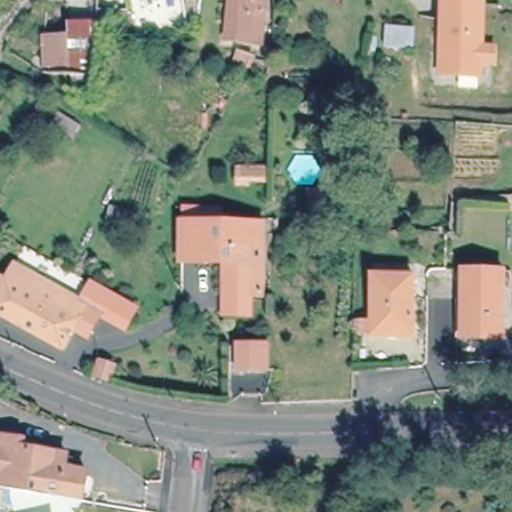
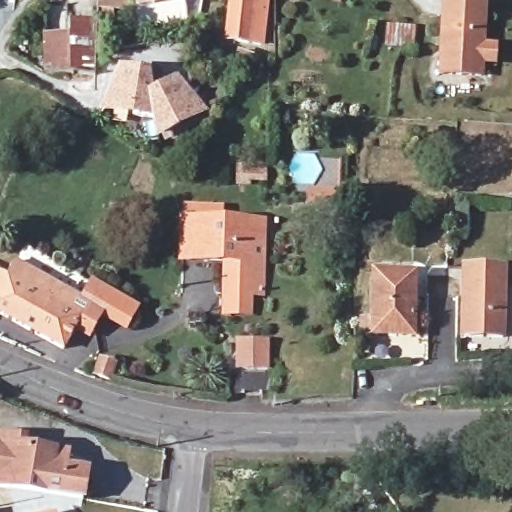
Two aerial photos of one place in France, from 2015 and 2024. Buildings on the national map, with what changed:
unchanged [(136,26),(133,9),(116,11),(118,23),(97,26),(97,18),(98,0),(202,0),(199,18),(136,26)]
unchanged [(236,0),(271,0),(265,38),(231,34),(236,0)]
unchanged [(484,61),(483,74),(442,71),(448,0),(482,0),(488,1),(485,45),(498,46),(496,61),(484,61)]
unchanged [(56,60),(50,59),(50,31),(70,31),(69,20),(97,18),(97,26),(95,49),(95,70),(71,69),(56,69),(56,60)]
unchanged [(418,26),(418,46),(385,46),(386,25),(418,26)]
new [(150,71),(153,90),(177,78),(207,114),(156,139),(151,119),(97,113),(118,68),(150,71)]
unchanged [(270,163),(270,180),(234,181),(235,164),(270,163)]
demolished [(342,188),(343,205),(305,205),(305,186),(342,188)]
unchanged [(217,301),(218,281),(224,281),(225,255),(178,253),(180,213),(181,213),(181,200),(199,200),(198,214),(248,215),(256,216),(255,237),(255,282),(244,282),(243,302),(217,301)]
unchanged [(415,216),(415,235),(401,234),(402,216),(415,216)]
unchanged [(65,341),(0,306),(0,250),(1,249),(85,293),(94,275),(137,298),(130,311),(106,298),(104,303),(90,327),(77,320),(65,341)]
unchanged [(504,265),(502,333),(461,332),(463,264),(504,265)]
unchanged [(411,331),(372,330),(372,270),(413,271),(411,331)]
unchanged [(235,366),(236,338),(258,338),(270,339),(270,367),(257,367),(235,366)]
unchanged [(124,358),(119,372),(105,368),(109,353),(124,358)]
unchanged [(0,436),(21,439),(20,447),(67,455),(65,468),(87,472),(82,501),(0,487),(0,436)]

